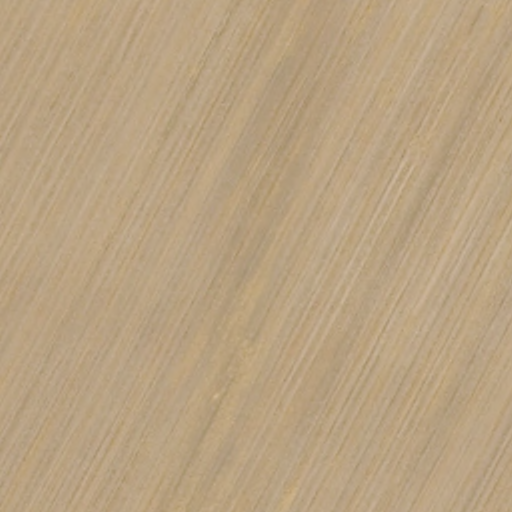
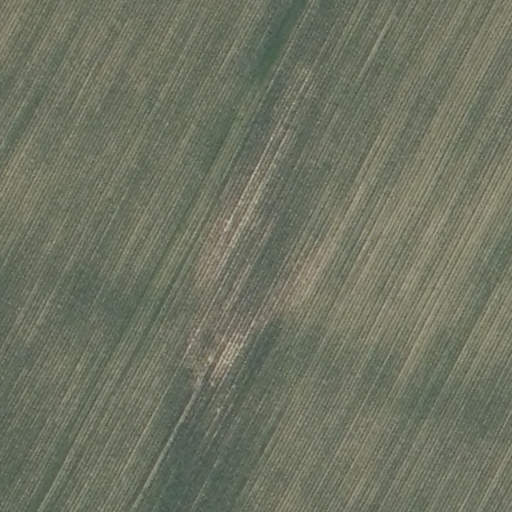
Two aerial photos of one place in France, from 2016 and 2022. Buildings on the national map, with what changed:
[]

